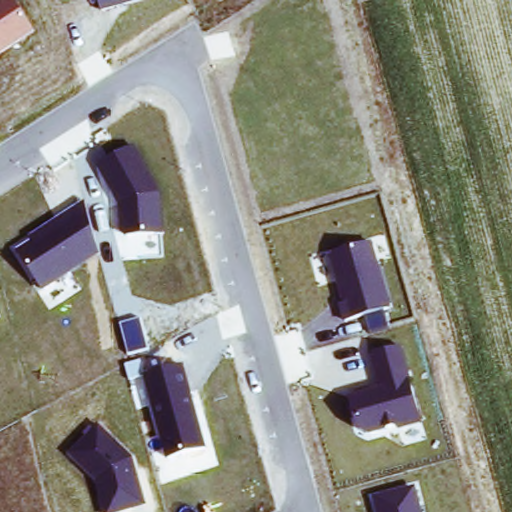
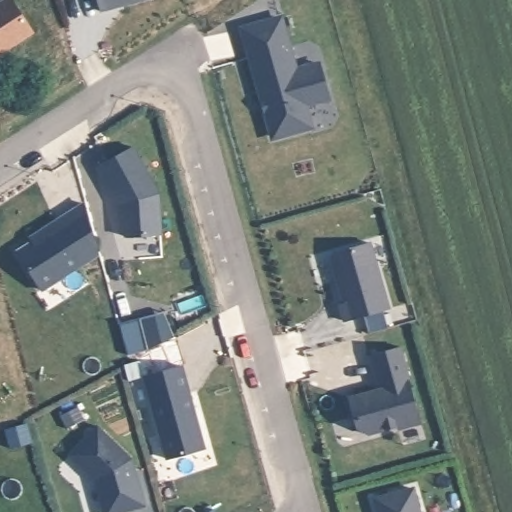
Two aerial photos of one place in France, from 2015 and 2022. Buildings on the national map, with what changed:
unchanged [(35,34),(0,55),(0,3),(6,0),(14,0),(35,34)]
unchanged [(98,16),(95,0),(162,0),(98,16)]
new [(278,21),(287,53),(289,52),(295,74),(317,67),(327,102),(305,109),(311,131),(275,141),(271,126),(268,127),(265,115),(267,114),(264,105),(262,105),(250,65),(252,65),(243,31),(278,21)]
unchanged [(123,235),(122,202),(100,167),(134,146),(162,192),(165,234),(123,235)]
unchanged [(101,256),(40,295),(15,249),(84,206),(101,256)]
unchanged [(337,306),(342,305),(330,260),(332,253),(372,242),(391,312),(341,325),(337,306)]
unchanged [(379,390),(369,353),(402,345),(423,429),(397,437),(395,430),(360,440),(350,397),(379,390)]
unchanged [(145,378),(146,378),(183,366),(205,450),(167,461),(145,378)]
unchanged [(134,457),(147,505),(126,512),(106,512),(98,478),(69,456),(98,426),(134,457)]
unchanged [(372,498),(416,489),(422,512),(376,512),(372,498)]

